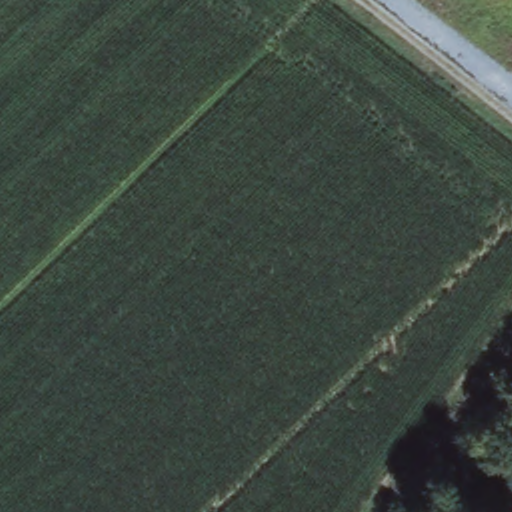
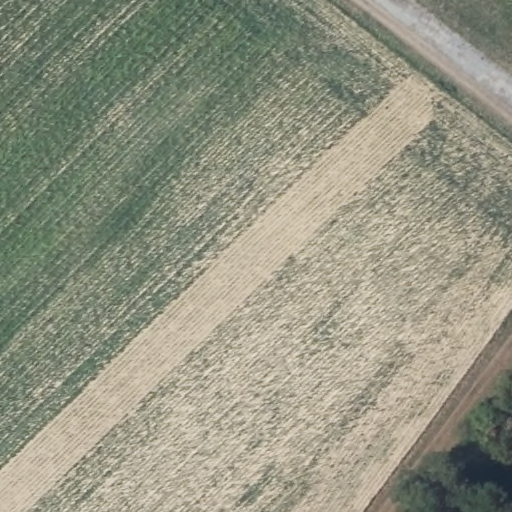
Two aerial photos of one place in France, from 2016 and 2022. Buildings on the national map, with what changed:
[]

